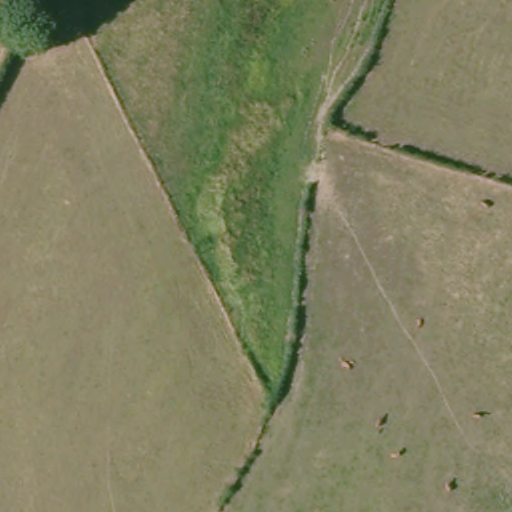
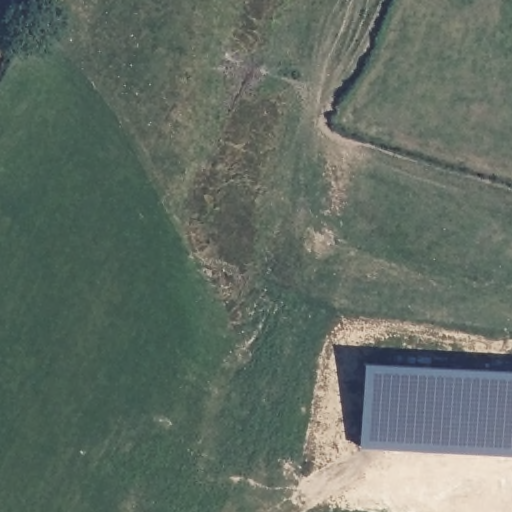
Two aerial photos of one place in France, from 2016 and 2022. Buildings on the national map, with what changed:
new [(372,366),(512,379),(512,456),(365,443),(372,366)]

